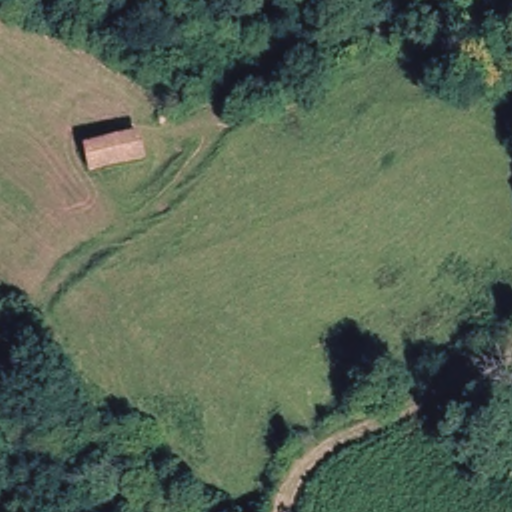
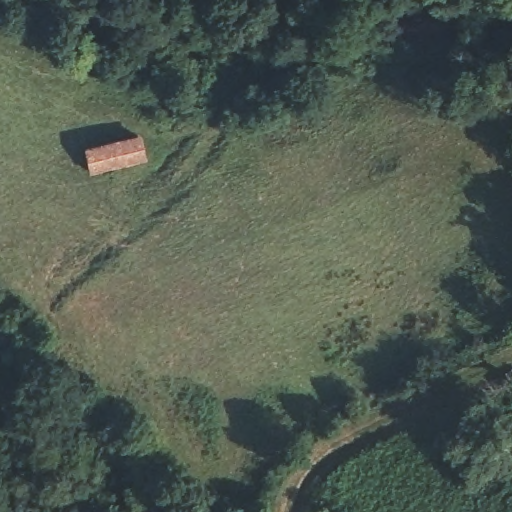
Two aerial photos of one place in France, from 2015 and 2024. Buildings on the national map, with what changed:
unchanged [(88,177),(81,156),(134,137),(143,160),(100,175),(88,177)]

